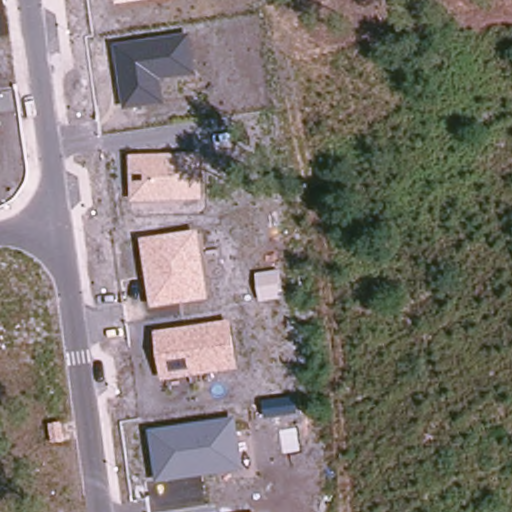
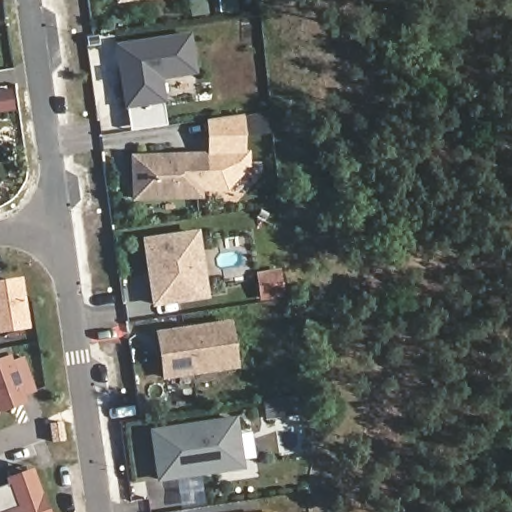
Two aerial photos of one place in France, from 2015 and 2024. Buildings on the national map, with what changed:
unchanged [(117,5),(116,0),(149,0),(117,5)]
unchanged [(197,75),(163,80),(166,104),(124,109),(115,45),(191,34),(197,75)]
new [(162,104),(166,125),(130,131),(127,109),(162,104)]
new [(202,154),(207,155),(206,120),(243,114),(243,115),(268,111),(271,132),(245,135),(245,151),(250,151),(250,168),(246,167),(245,174),(228,191),(203,191),(202,154)]
unchanged [(203,200),(132,202),(131,155),(202,153),(203,200)]
unchanged [(209,300),(152,308),(141,238),(198,230),(209,300)]
new [(281,269),(286,298),(259,303),(255,273),(281,269)]
new [(0,333),(0,281),(18,278),(27,329),(0,333)]
unchanged [(238,370),(162,380),(156,332),(232,321),(238,370)]
new [(36,391),(23,396),(25,402),(0,411),(0,358),(8,355),(10,361),(24,356),(36,391)]
unchanged [(243,471),(157,483),(150,429),(237,417),(243,471)]
new [(5,485),(3,478),(30,468),(46,512),(0,512),(0,486),(5,485)]

